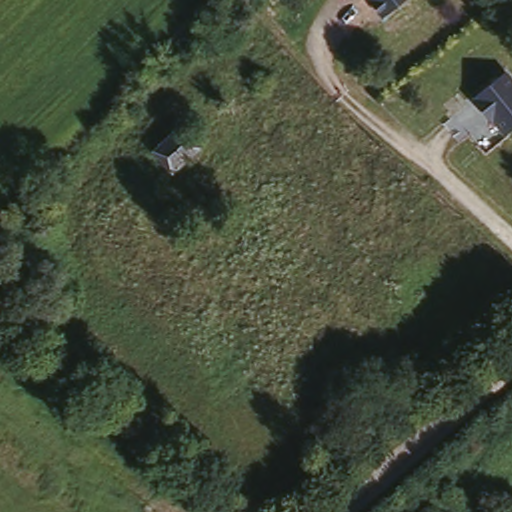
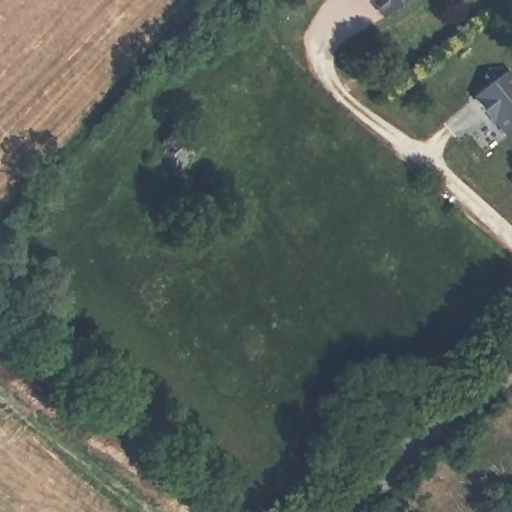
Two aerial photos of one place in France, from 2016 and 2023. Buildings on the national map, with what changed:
unchanged [(366,0),(401,0),(380,16),(366,0)]
unchanged [(465,104),(467,101),(466,101),(506,71),(512,79),(512,127),(495,140),(483,124),(481,126),(474,116),(465,104)]
unchanged [(178,128),(198,149),(168,175),(149,153),(178,128)]

